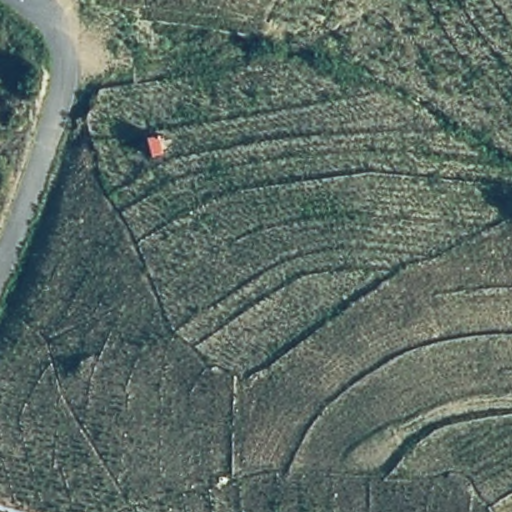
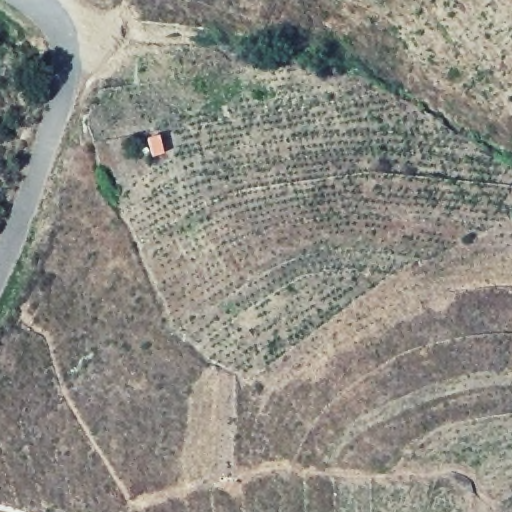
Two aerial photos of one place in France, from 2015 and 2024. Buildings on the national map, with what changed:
unchanged [(165,138),(170,159),(153,163),(148,141),(165,138)]

